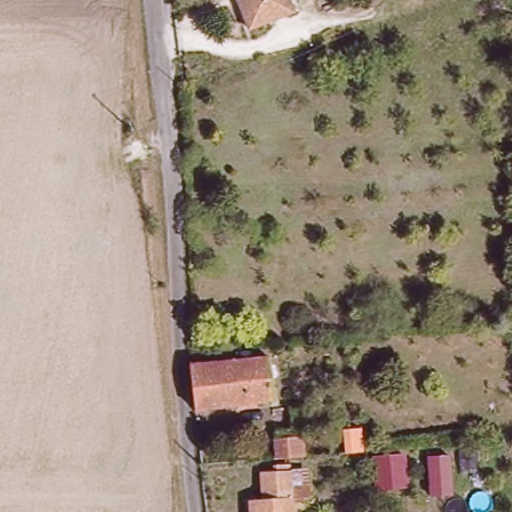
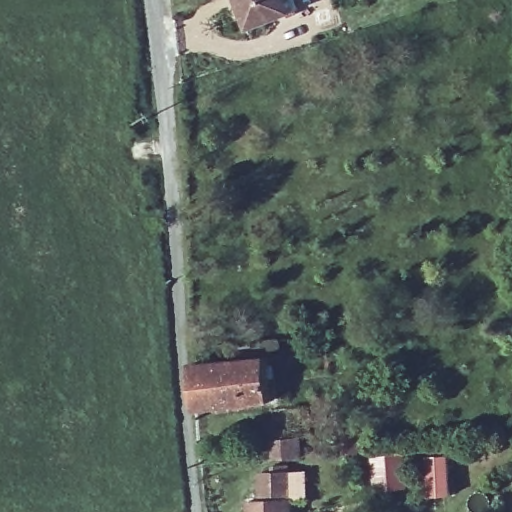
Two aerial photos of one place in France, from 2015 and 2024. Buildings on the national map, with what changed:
unchanged [(243,32),(233,4),(238,2),(237,0),(289,0),(294,14),(243,32)]
unchanged [(195,412),(192,367),(265,361),(269,404),(195,412)]
unchanged [(359,431),(361,455),(346,456),(345,431),(359,431)]
unchanged [(279,447),(303,446),(305,465),(280,466),(279,447)]
unchanged [(374,460),(403,456),(407,486),(377,490),(374,460)]
unchanged [(256,510),(283,508),(283,496),(266,496),(266,479),(279,478),(280,473),(292,472),(293,481),(310,480),(310,496),(294,497),(294,512),(256,512),(256,510)]

